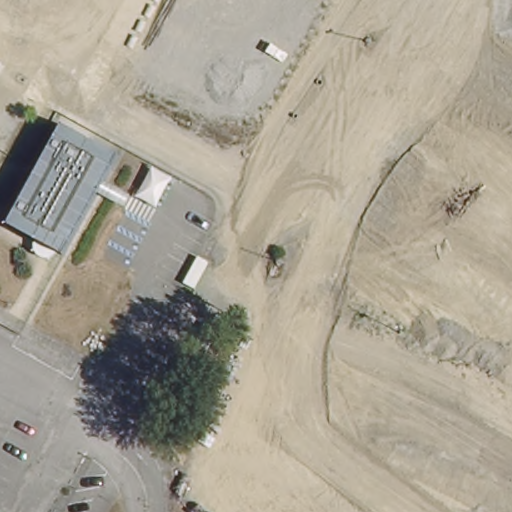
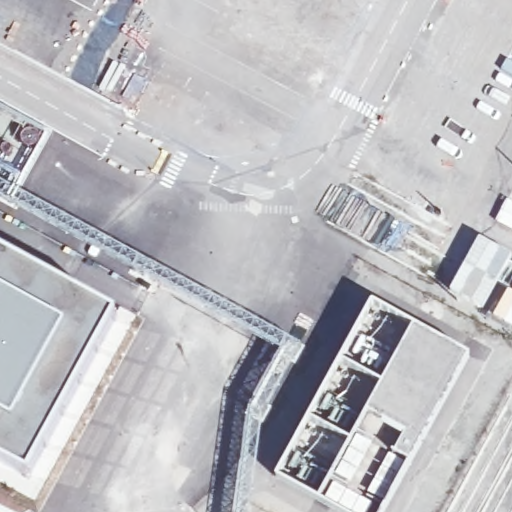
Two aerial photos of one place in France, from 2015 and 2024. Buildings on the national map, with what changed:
unchanged [(62,251),(9,223),(60,124),(116,153),(62,251)]
demolished [(225,159),(231,145),(233,142),(245,148),(242,155),(236,165),(225,159)]
new [(512,200),(512,230),(494,221),(507,197),(512,200)]
new [(479,236),(512,254),(483,310),(447,291),(479,236)]
new [(120,317),(76,388),(29,479),(0,464),(0,421),(13,428),(45,374),(66,333),(1,297),(0,297),(0,252),(120,317)]
new [(507,289),(512,292),(512,327),(490,315),(507,289)]
new [(1,297),(0,300),(0,297),(1,297)]
new [(1,297),(66,333),(45,374),(13,428),(0,421),(0,300),(1,297)]
new [(366,298),(472,352),(386,512),(336,512),(275,479),(366,298)]

